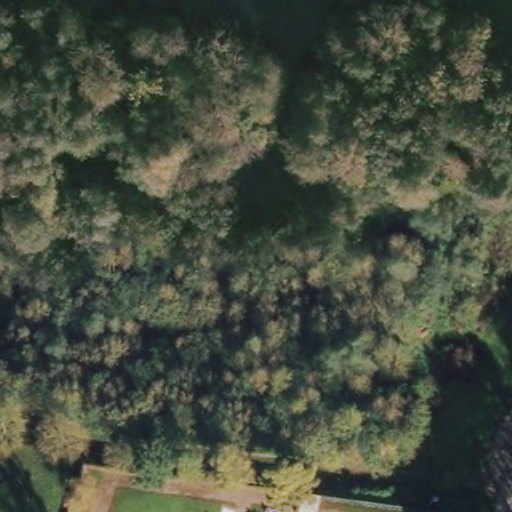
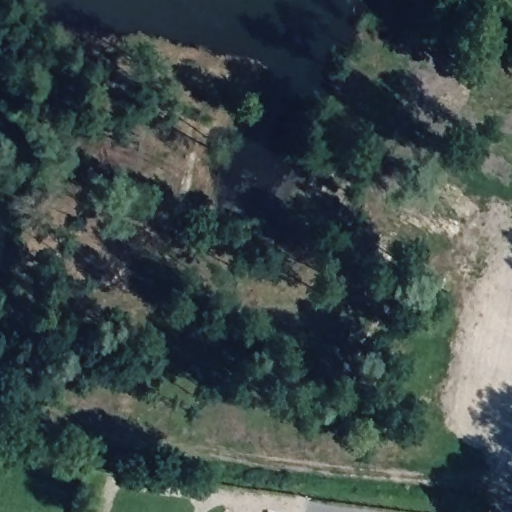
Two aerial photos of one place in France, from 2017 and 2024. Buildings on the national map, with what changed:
unchanged [(318,512),(300,512),(303,496),(320,499),(318,512)]

